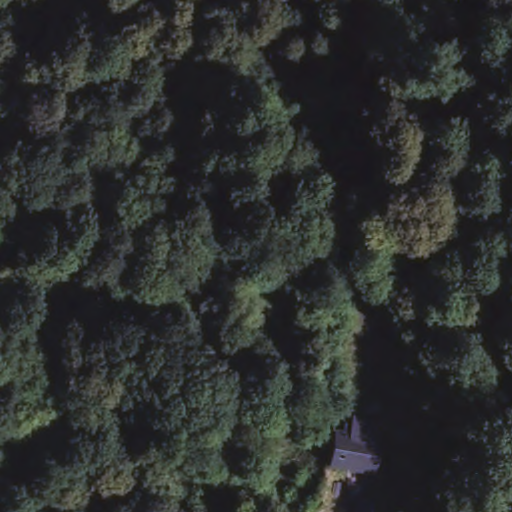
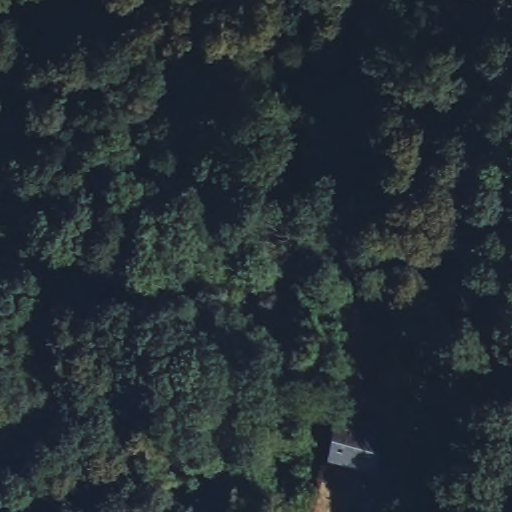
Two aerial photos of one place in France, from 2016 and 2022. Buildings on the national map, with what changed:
unchanged [(397,487),(318,474),(323,445),(325,432),(403,445),(397,487)]

